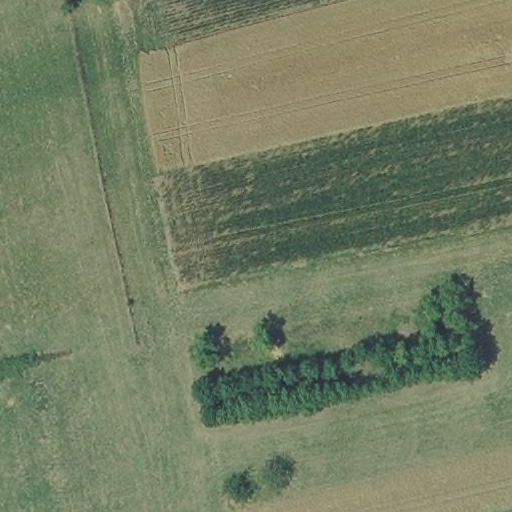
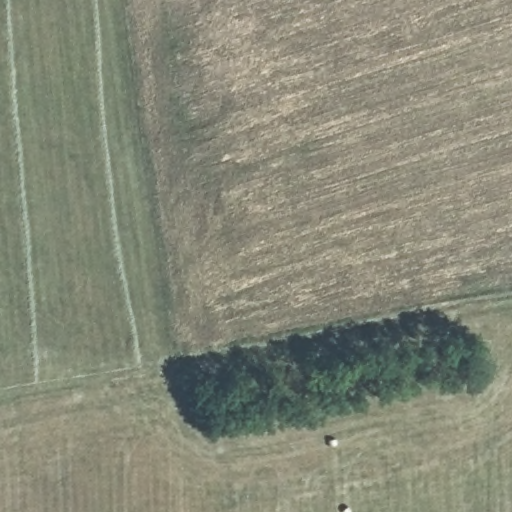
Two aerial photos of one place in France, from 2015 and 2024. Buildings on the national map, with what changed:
[]

